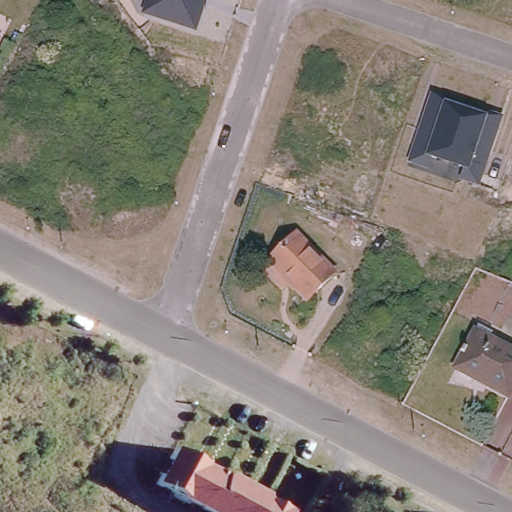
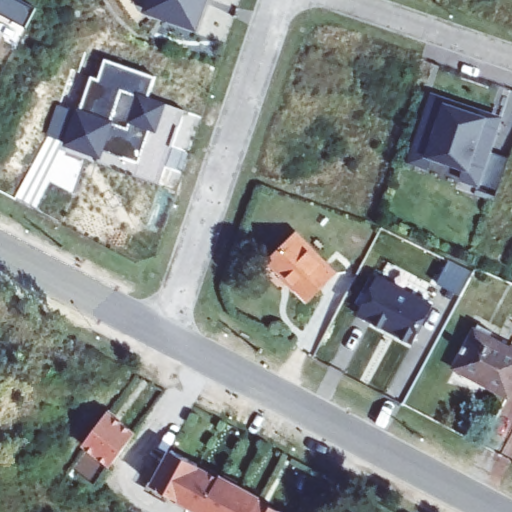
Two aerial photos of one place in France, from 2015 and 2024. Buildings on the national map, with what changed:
unchanged [(196,32),(141,12),(145,0),(207,0),(196,32)]
new [(84,111),(86,111),(98,76),(105,79),(111,59),(163,76),(156,97),(172,103),(163,129),(158,127),(146,162),(108,149),(108,152),(94,147),(93,150),(73,144),(84,111)]
new [(73,144),(93,150),(94,147),(108,152),(108,149),(146,162),(158,127),(163,129),(172,103),(191,110),(166,184),(70,152),(73,144)]
unchanged [(510,126),(488,188),(473,183),(477,172),(438,159),(445,139),(431,134),(442,103),(510,126)]
unchanged [(333,273),(308,298),(269,260),(294,235),(333,273)]
new [(456,260),(479,273),(467,296),(444,283),(456,260)]
new [(384,276),(439,305),(419,342),(403,333),(404,331),(394,326),(393,328),(364,313),(384,276)]
unchanged [(512,347),(512,375),(504,391),(483,380),(485,377),(453,359),(471,325),(512,347)]
new [(114,415),(143,435),(119,468),(91,447),(114,415)]
unchanged [(206,467),(205,469),(226,481),(228,478),(269,500),(267,502),(285,512),(208,512),(161,486),(179,453),(206,467)]

